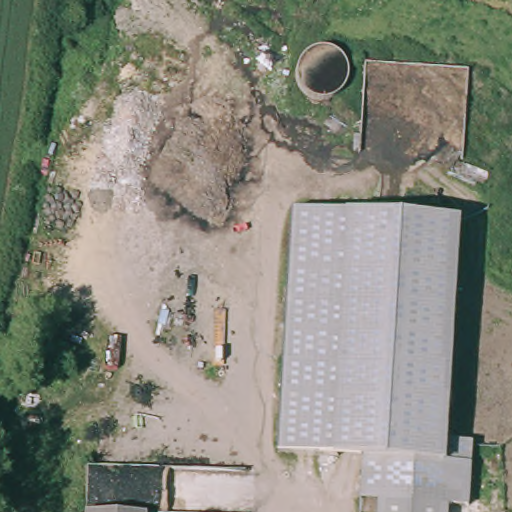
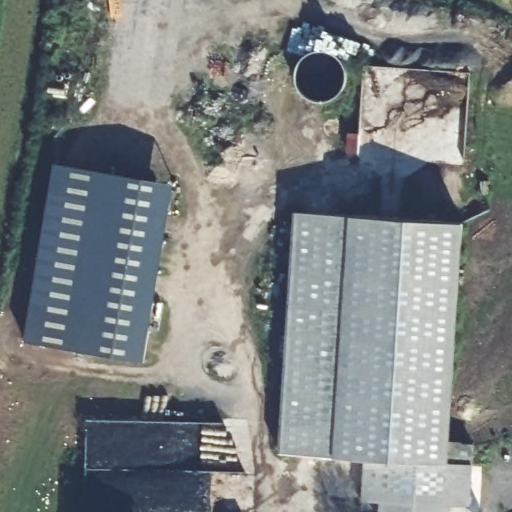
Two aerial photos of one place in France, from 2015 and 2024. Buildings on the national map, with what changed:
new [(168,190),(137,365),(20,343),(49,168),(168,190)]
unchanged [(280,452),(292,205),(465,220),(452,432),(474,434),(471,501),(453,501),(452,512),(375,512),(375,496),(331,494),(332,458),(280,452)]

